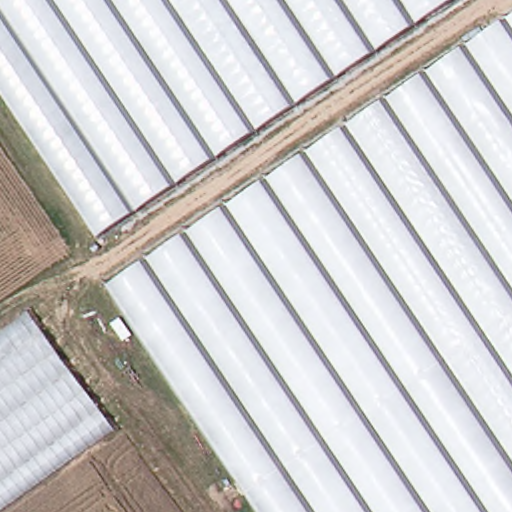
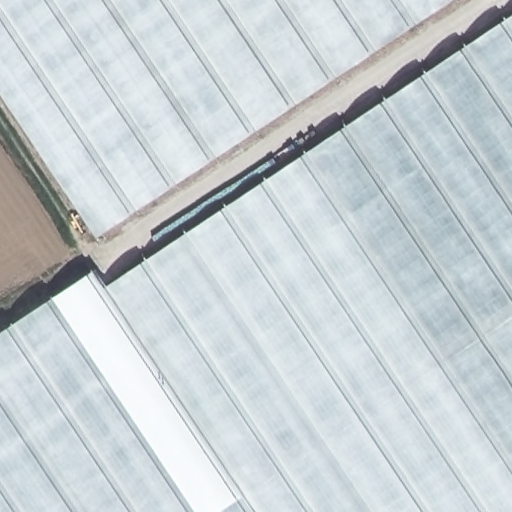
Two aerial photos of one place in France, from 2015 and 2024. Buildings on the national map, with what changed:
unchanged [(0,98),(0,0),(457,0),(96,241),(0,98)]
unchanged [(512,13),(512,512),(261,512),(108,284),(512,13)]
new [(0,347),(95,284),(249,512),(0,512),(0,347)]
demolished [(178,512),(0,512),(0,331),(29,311),(178,512)]

